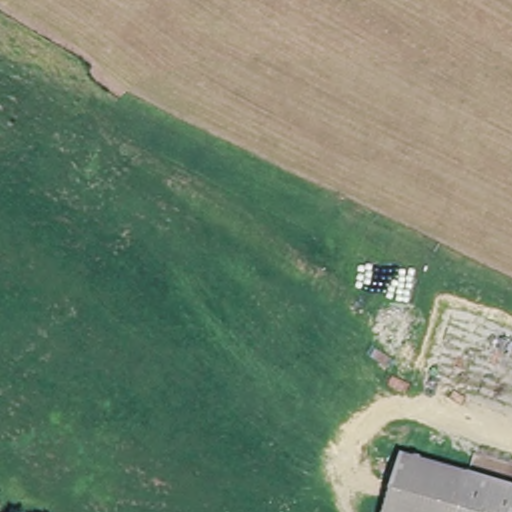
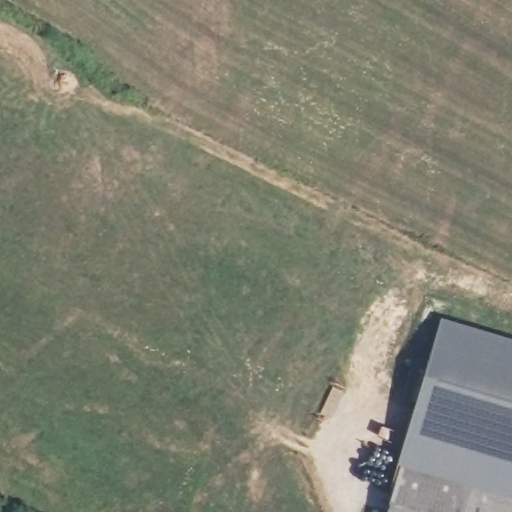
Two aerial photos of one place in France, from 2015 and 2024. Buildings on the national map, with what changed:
new [(512,339),(512,499),(399,465),(441,317),(512,339)]
unchanged [(399,465),(512,499),(512,512),(386,512),(399,465)]

